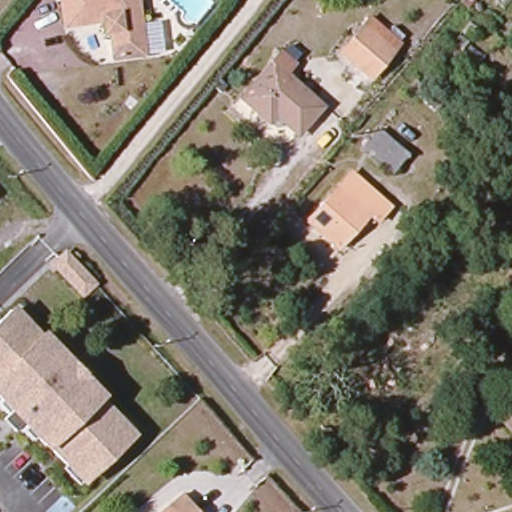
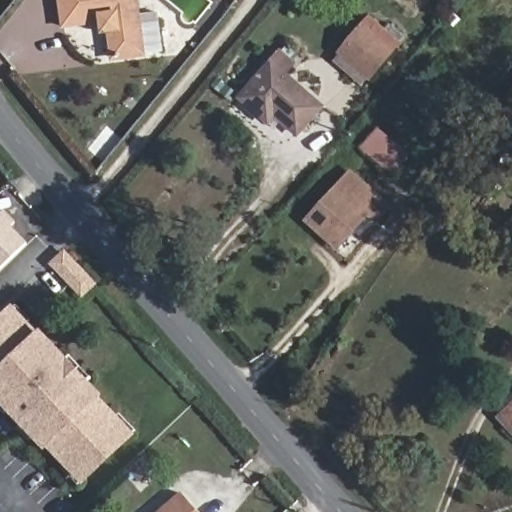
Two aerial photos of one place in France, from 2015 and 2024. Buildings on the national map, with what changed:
unchanged [(109,39),(102,40),(100,26),(64,30),(60,0),(135,0),(143,58),(112,63),(109,39)]
unchanged [(391,49),(369,77),(340,54),(361,26),(391,49)]
unchanged [(321,109),(301,133),(278,113),(269,125),(240,100),(271,64),(321,109)]
unchanged [(359,155),(393,113),(419,134),(390,175),(359,155)]
unchanged [(386,215),(371,231),(360,223),(335,250),(307,221),(351,178),(386,215)]
new [(5,209),(16,221),(12,226),(29,243),(1,270),(0,269),(0,214),(5,209)]
unchanged [(52,264),(64,252),(80,268),(94,283),(81,295),(52,264)]
unchanged [(24,328),(26,327),(38,339),(39,337),(64,363),(66,361),(87,382),(85,384),(97,396),(96,397),(115,417),(113,419),(130,436),(84,481),(68,464),(66,466),(46,446),(45,447),(23,425),(14,433),(3,422),(11,413),(0,402),(0,322),(9,313),(24,328)]
unchanged [(193,512),(166,512),(180,499),(193,512)]

